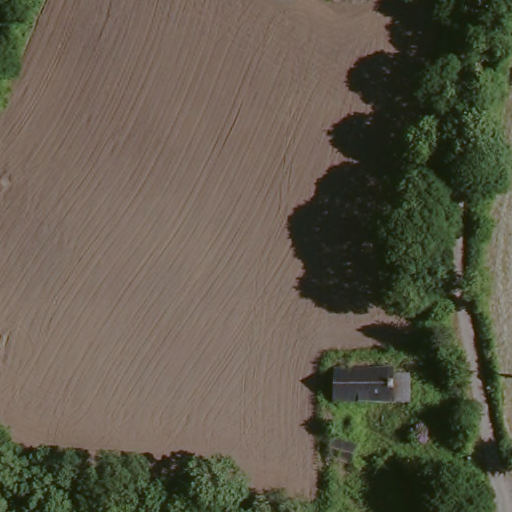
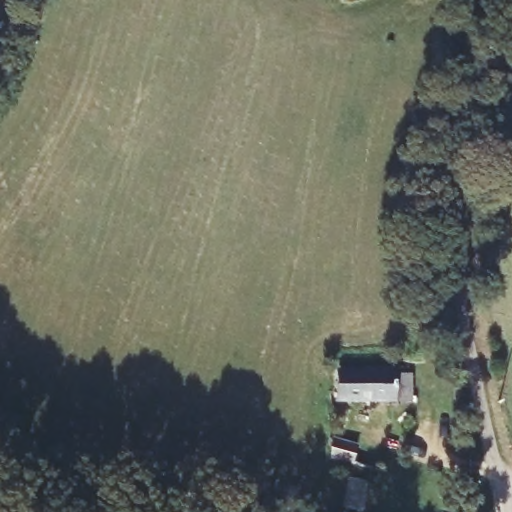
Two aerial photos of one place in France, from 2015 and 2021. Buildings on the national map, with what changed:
unchanged [(374,397),(330,398),(328,366),(341,366),(401,365),(401,391),(387,391),(386,397),(374,397)]
unchanged [(349,462),(327,453),(331,435),(354,443),(349,462)]

